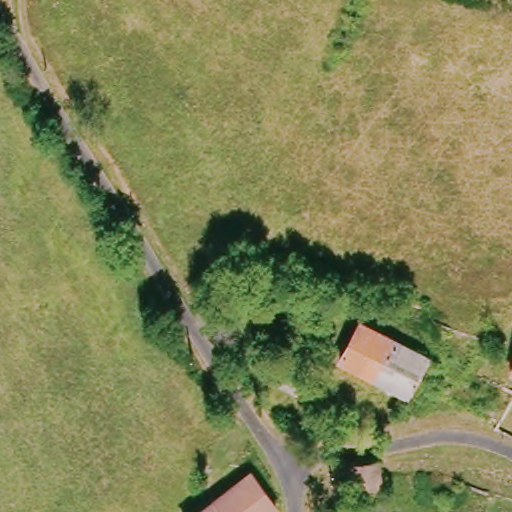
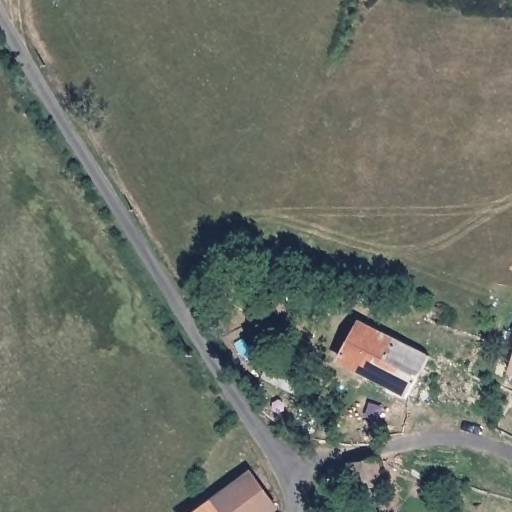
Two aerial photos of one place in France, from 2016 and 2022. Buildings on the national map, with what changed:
unchanged [(354,327),(390,345),(370,382),(333,362),(354,327)]
unchanged [(381,388),(370,382),(390,345),(420,361),(402,398),(385,390),(381,388)]
unchanged [(503,373),(509,354),(512,345),(512,376),(503,373)]
unchanged [(371,461),(376,489),(349,492),(345,464),(371,461)]
unchanged [(272,510),(270,512),(216,512),(210,504),(247,475),(272,510)]
unchanged [(216,512),(199,512),(210,504),(216,512)]

